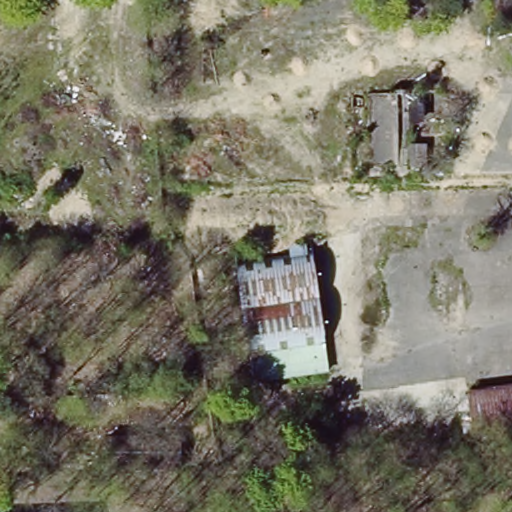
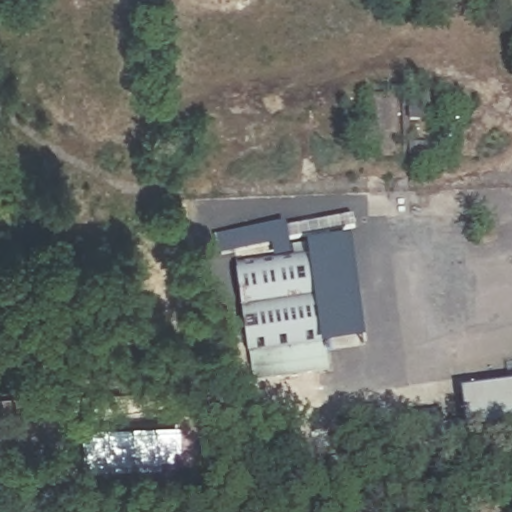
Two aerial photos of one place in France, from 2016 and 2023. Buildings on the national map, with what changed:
unchanged [(431,165),(412,165),(411,144),(431,144),(431,165)]
new [(324,348),(313,256),(274,261),(272,246),(221,256),(217,236),(287,223),(291,247),(307,246),(352,238),(368,342),(324,348)]
unchanged [(250,383),(237,265),(313,256),(327,373),(250,383)]
unchanged [(465,391),(512,383),(512,429),(469,435),(465,391)]

